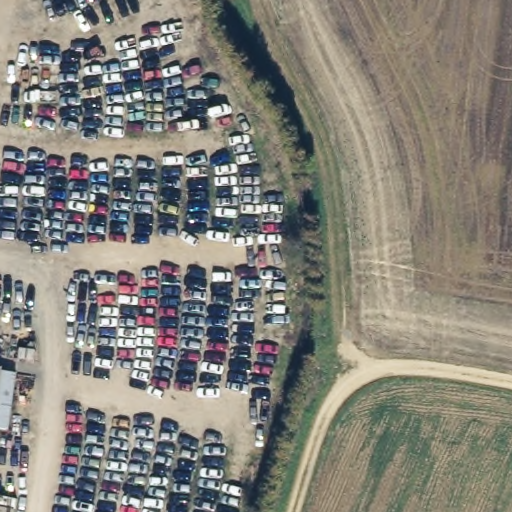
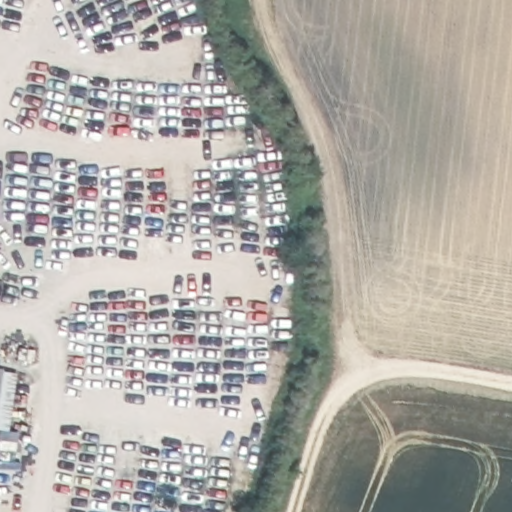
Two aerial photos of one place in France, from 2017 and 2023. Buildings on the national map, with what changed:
unchanged [(3,376),(20,378),(11,433),(0,432),(0,376),(3,376)]

